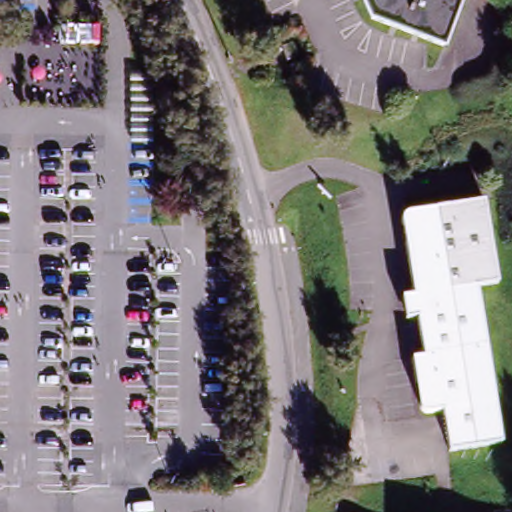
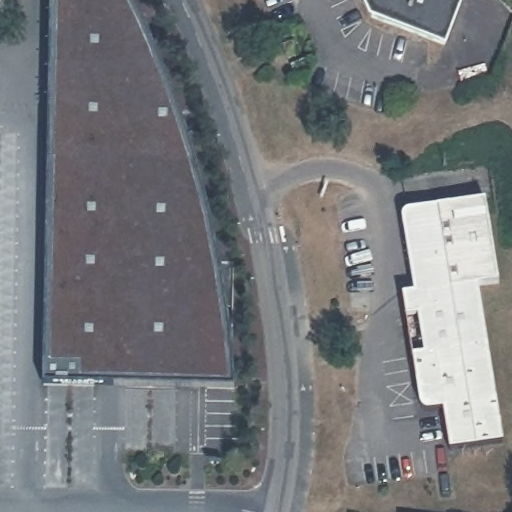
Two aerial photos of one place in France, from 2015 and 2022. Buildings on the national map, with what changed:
unchanged [(6,22),(0,22),(0,0),(6,0),(6,22)]
new [(155,51),(205,209),(238,356),(236,398),(49,396),(53,0),(130,0),(155,51)]
unchanged [(448,47),(374,19),(366,0),(466,0),(448,47)]
unchanged [(295,52),(295,54),(286,57),(284,52),(281,45),(291,41),(295,52)]
unchanged [(415,360),(427,358),(425,349),(423,331),(421,320),(409,322),(405,299),(417,297),(405,222),(406,218),(409,215),(439,210),(488,202),(502,285),(479,288),(506,445),(452,453),(446,412),(431,415),(428,415),(425,413),(423,408),(422,401),(419,386),(415,360)]

